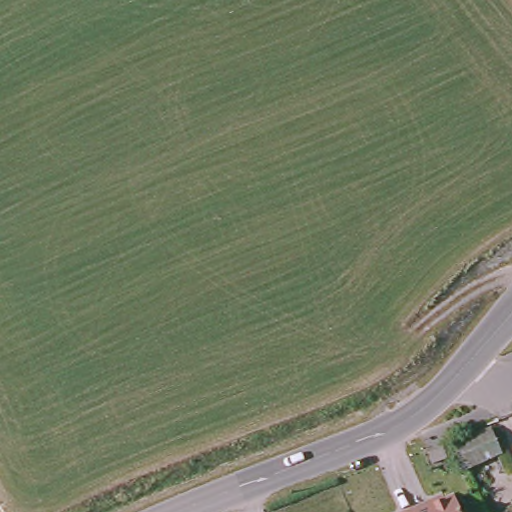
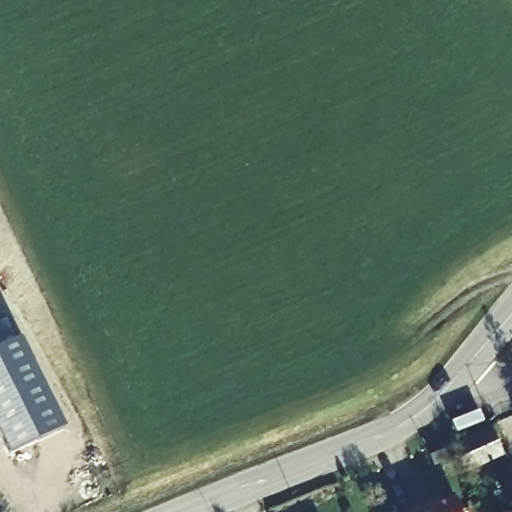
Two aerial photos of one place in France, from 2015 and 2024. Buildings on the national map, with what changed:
new [(8,455),(0,437),(0,347),(22,337),(66,427),(8,455)]
unchanged [(451,451),(491,436),(501,464),(462,479),(451,451)]
unchanged [(454,496),(461,512),(405,512),(442,496),(445,500),(454,496)]

